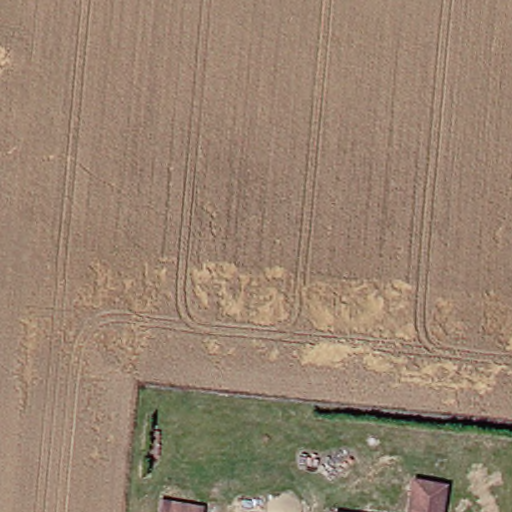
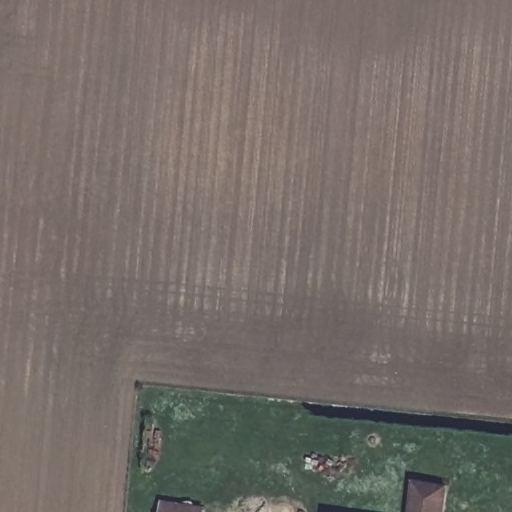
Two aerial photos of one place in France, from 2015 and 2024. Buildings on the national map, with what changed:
unchanged [(436,512),(325,512),(327,493),(404,502),(411,454),(442,459),(436,512)]
unchanged [(153,504),(180,508),(196,510),(196,512),(152,512),(153,504)]

